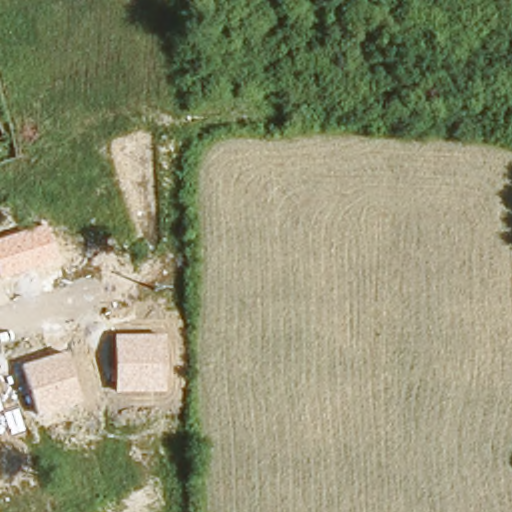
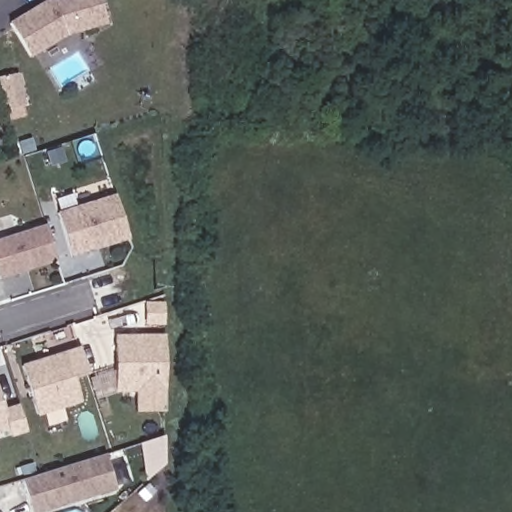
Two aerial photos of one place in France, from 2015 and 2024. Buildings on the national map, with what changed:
new [(29,57),(7,21),(44,0),(99,0),(107,25),(66,35),(29,57)]
new [(130,239),(71,257),(57,211),(115,193),(130,239)]
unchanged [(56,262),(0,279),(0,238),(44,224),(56,262)]
unchanged [(164,334),(164,392),(114,393),(114,335),(164,334)]
unchanged [(81,402),(37,415),(21,365),(66,351),(81,402)]
unchanged [(9,436),(7,428),(0,430),(0,402),(2,410),(17,404),(26,431),(9,436)]
new [(116,489),(41,512),(32,512),(23,477),(105,453),(116,489)]

